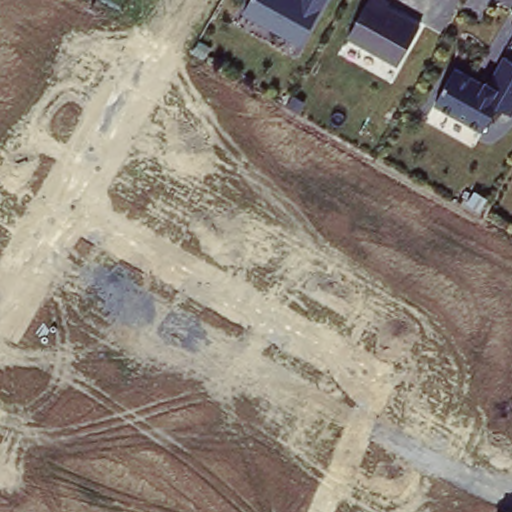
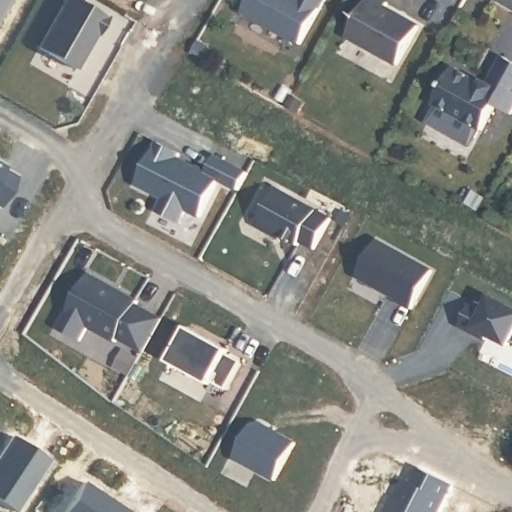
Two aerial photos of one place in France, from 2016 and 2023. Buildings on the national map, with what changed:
new [(79,74),(26,44),(57,0),(88,0),(113,16),(79,74)]
unchanged [(247,11),(253,0),(328,0),(304,43),(247,11)]
unchanged [(389,5),(423,24),(401,62),(352,34),(371,0),(390,0),(392,1),(389,5)]
unchanged [(488,79),(491,80),(507,54),(512,57),(512,109),(498,101),(484,126),(438,100),(457,65),(487,81),(488,79)]
new [(184,156),(181,161),(205,169),(215,155),(249,174),(239,192),(220,180),(202,223),(188,217),(179,228),(160,215),(164,204),(138,188),(158,141),(184,156)]
new [(0,204),(0,160),(8,164),(6,166),(21,174),(3,205),(0,204)]
new [(335,218),(318,248),(305,240),(302,244),(263,222),(283,188),(335,218)]
new [(434,269),(414,307),(402,302),(405,300),(362,274),(382,239),(434,269)]
new [(142,300),(140,304),(165,318),(146,351),(122,337),(119,340),(92,325),(84,339),(62,328),(93,273),(142,300)]
new [(512,351),(461,324),(471,304),(487,311),(494,297),(512,308),(512,351)]
new [(235,356),(232,360),(242,364),(226,393),(213,385),(212,391),(171,369),(189,330),(235,356)]
new [(304,442),(280,486),(232,459),(253,421),(304,442)]
new [(455,484),(441,512),(392,512),(395,507),(397,507),(411,481),(414,483),(422,467),(455,484)]

